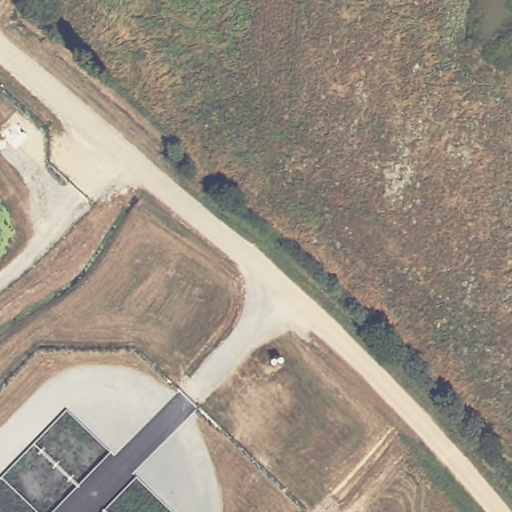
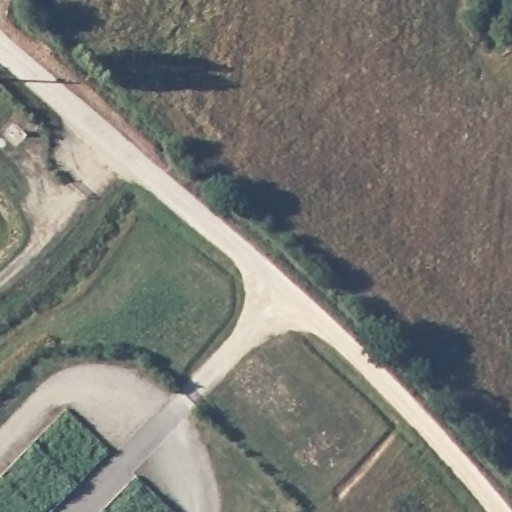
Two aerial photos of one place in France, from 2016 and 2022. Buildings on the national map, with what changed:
[]

